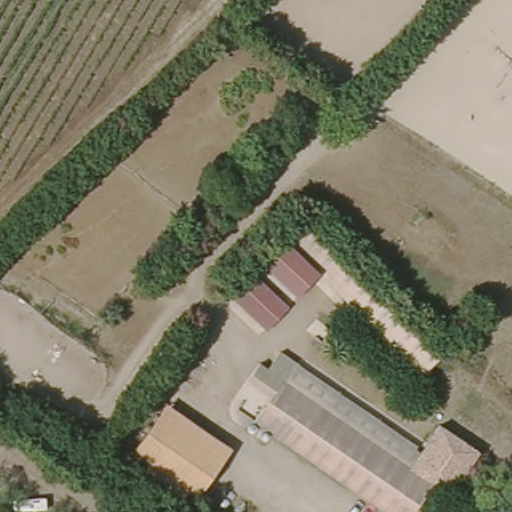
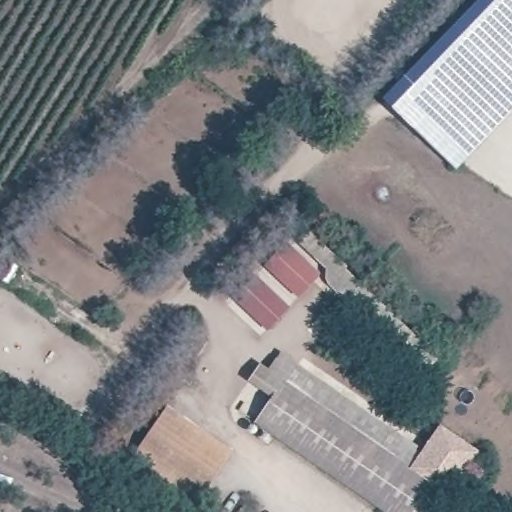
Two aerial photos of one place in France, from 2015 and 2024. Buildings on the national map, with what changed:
new [(512,0),(512,112),(457,170),(383,98),(478,0),(512,0)]
unchanged [(316,240),(324,233),(350,265),(358,273),(356,275),(439,375),(426,386),(343,286),(343,270),(316,240)]
unchanged [(307,292),(275,261),(296,240),(326,272),(307,292)]
unchanged [(270,332),(239,300),(261,280),(293,312),(270,332)]
unchanged [(450,512),(383,512),(258,427),(270,397),(248,382),(262,363),(272,370),(282,355),(424,451),(412,470),(455,501),(450,512)]
unchanged [(232,456),(196,497),(139,448),(176,407),(232,456)]
unchanged [(486,452),(455,501),(412,470),(424,451),(440,425),(486,452)]

